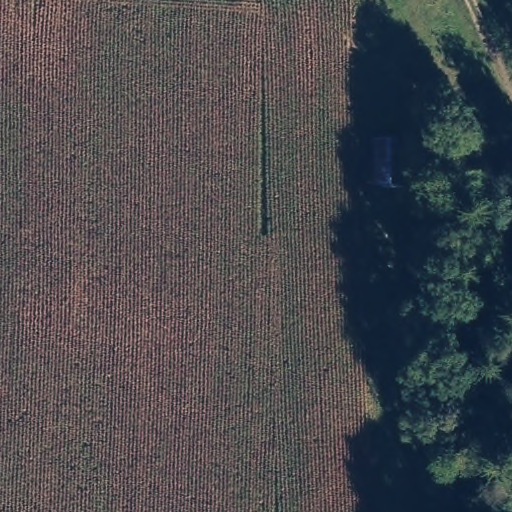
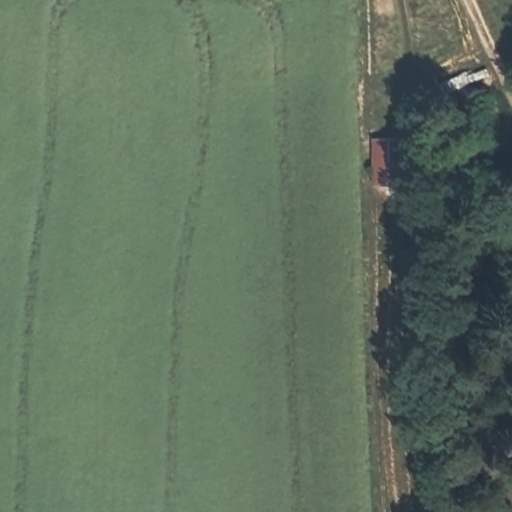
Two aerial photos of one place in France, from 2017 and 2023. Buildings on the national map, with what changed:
unchanged [(370,132),(409,130),(411,177),(372,176),(370,132)]

